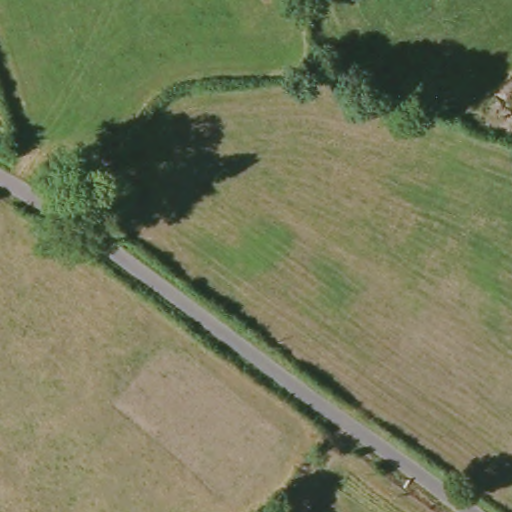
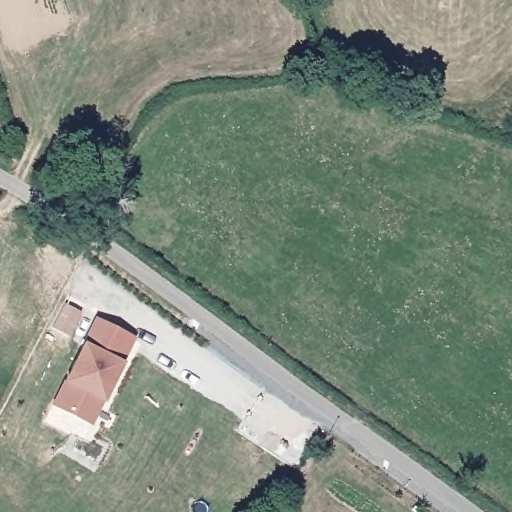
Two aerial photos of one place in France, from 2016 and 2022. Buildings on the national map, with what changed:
new [(120,365),(88,426),(48,406),(82,342),(94,319),(134,340),(120,365)]

